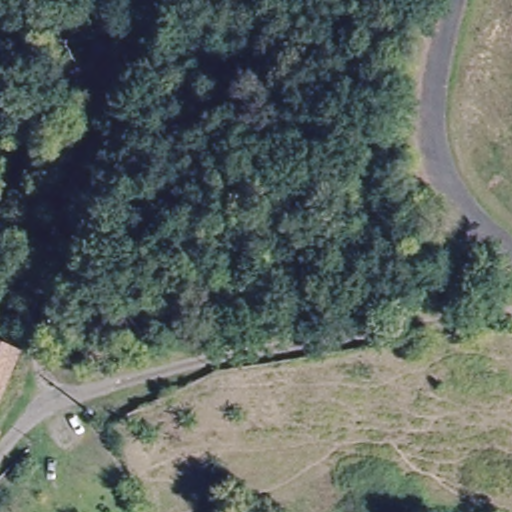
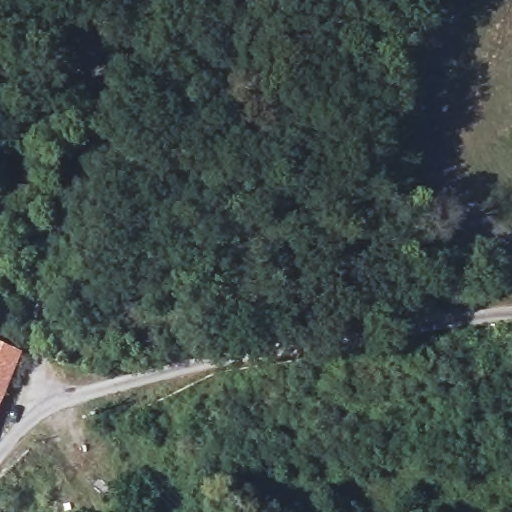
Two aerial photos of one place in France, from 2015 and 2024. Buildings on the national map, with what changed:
unchanged [(22,347),(1,403),(0,405),(0,338),(22,347)]

